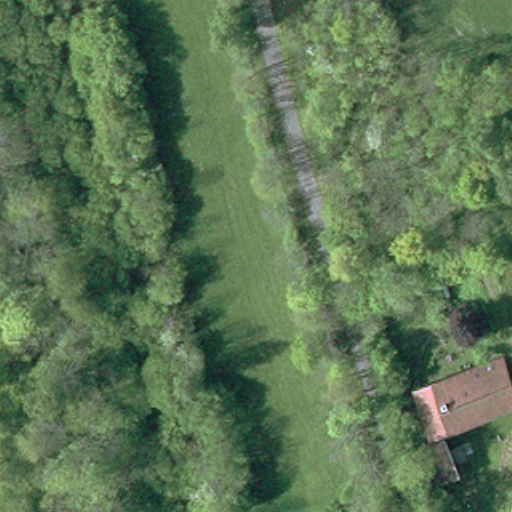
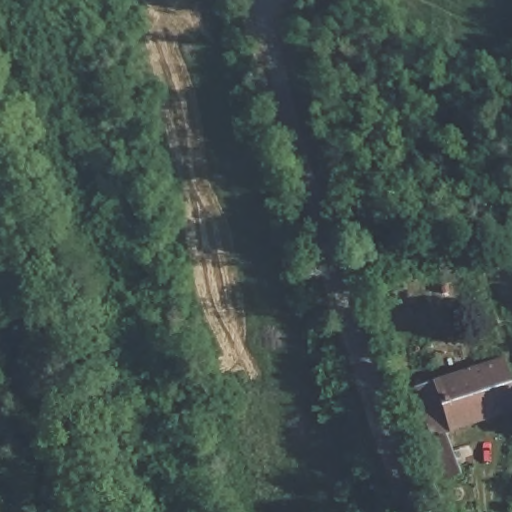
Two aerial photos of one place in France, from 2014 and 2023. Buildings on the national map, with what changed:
unchanged [(428,432),(413,385),(451,372),(497,357),(512,402),(512,406),(428,432)]
unchanged [(429,480),(418,441),(440,434),(452,473),(429,480)]

